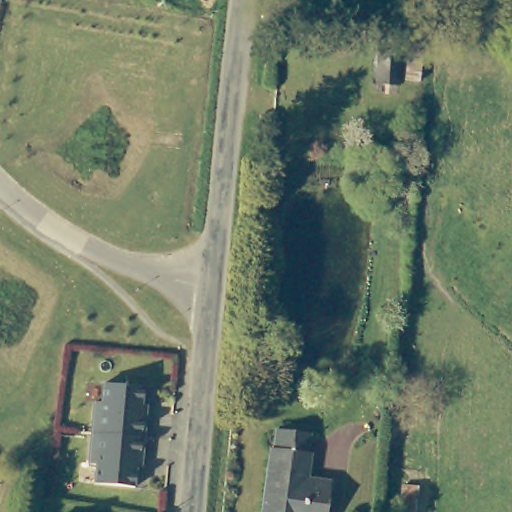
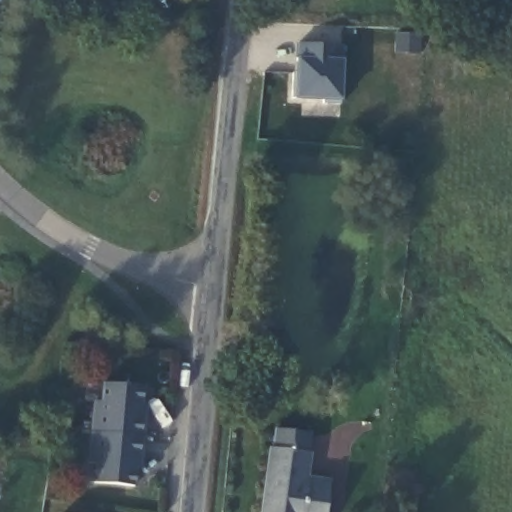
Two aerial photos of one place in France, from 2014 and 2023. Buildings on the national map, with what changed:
new [(345,60),(342,102),(295,99),(297,57),(297,42),(344,45),(345,60)]
demolished [(411,52),(410,80),(383,80),(384,51),(411,52)]
unchanged [(98,391),(104,392),(106,373),(147,377),(145,399),(144,407),(149,407),(147,427),(145,447),(139,447),(136,476),(97,472),(99,453),(91,452),(97,395),(98,391)]
unchanged [(327,480),(322,512),(262,512),(272,447),(276,423),(312,427),(309,453),(307,477),(327,480)]

